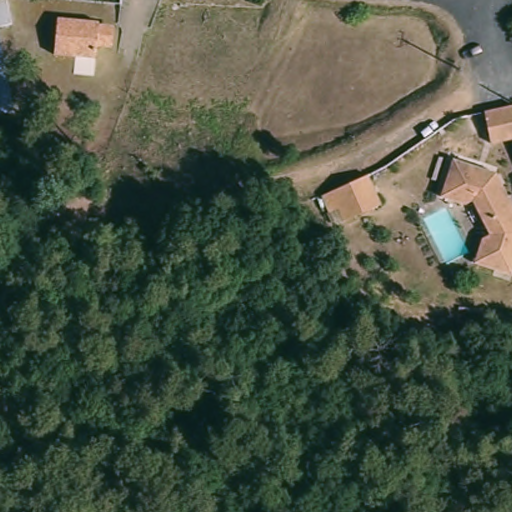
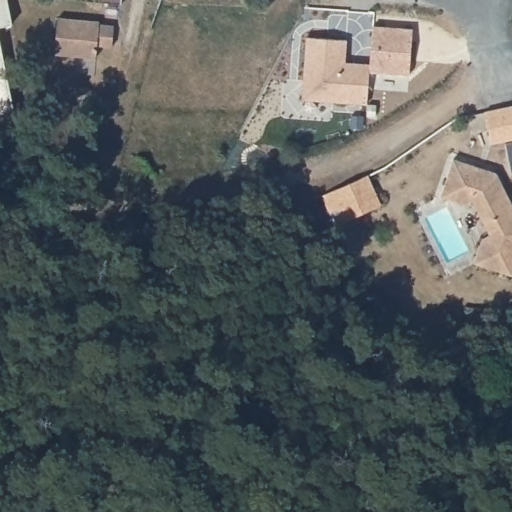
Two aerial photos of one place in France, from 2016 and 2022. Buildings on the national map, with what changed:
unchanged [(12,12),(0,14),(0,0),(10,0),(10,1),(12,12)]
unchanged [(101,42),(99,54),(57,49),(61,14),(104,19),(103,20),(116,22),(116,28),(115,44),(101,42)]
new [(372,57),(374,20),(414,22),(411,67),(371,65),(372,57)]
unchanged [(0,119),(0,31),(16,116),(0,119)]
new [(308,31),(348,34),(346,63),(354,64),(354,56),(372,57),(371,65),(369,97),(305,94),(308,31)]
unchanged [(491,144),(490,136),(485,112),(512,107),(512,140),(491,144)]
unchanged [(465,205),(442,196),(454,160),(497,174),(512,204),(512,276),(476,263),(483,239),(492,234),(474,201),(465,205)]
unchanged [(328,207),(324,198),(345,190),(368,177),(381,206),(345,222),(336,226),(328,207)]

